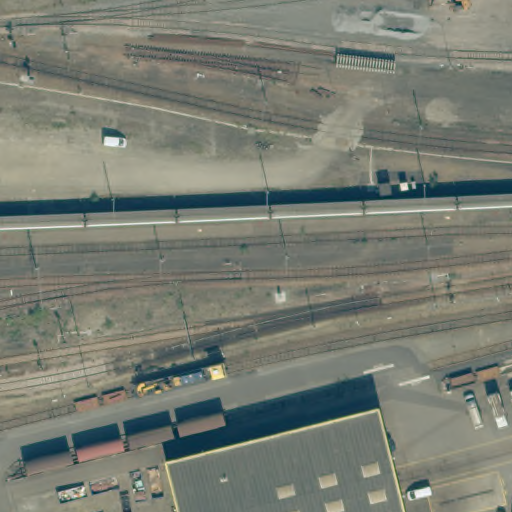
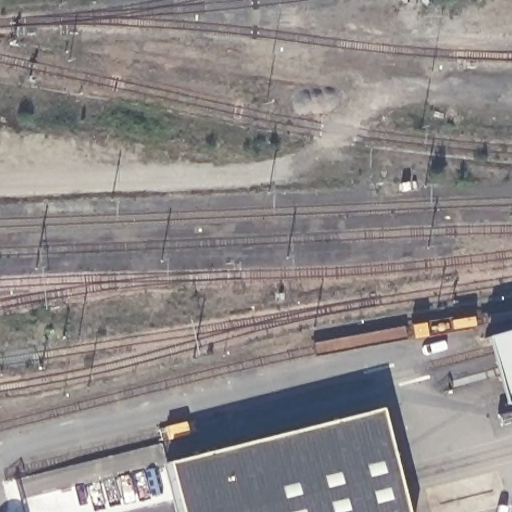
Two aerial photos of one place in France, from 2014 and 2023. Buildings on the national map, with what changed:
new [(503,407),(485,339),(512,331),(512,404),(503,407)]
unchanged [(379,410),(405,512),(178,512),(165,464),(379,410)]

